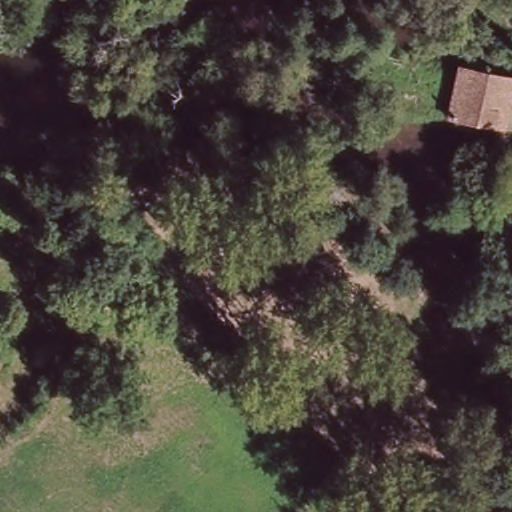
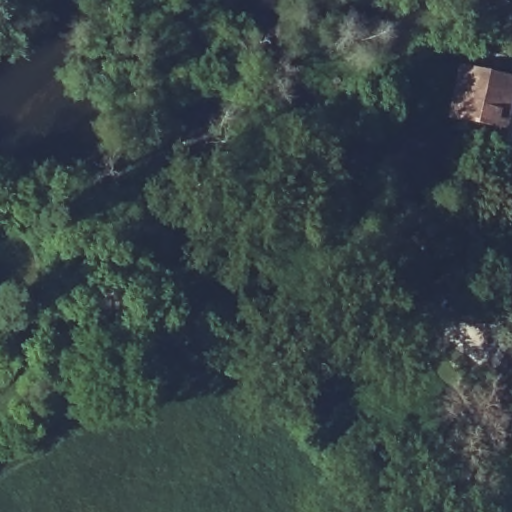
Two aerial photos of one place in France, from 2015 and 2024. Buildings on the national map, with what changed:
unchanged [(508,96),(501,126),(470,120),(450,115),(460,69),(511,80),(508,96)]

